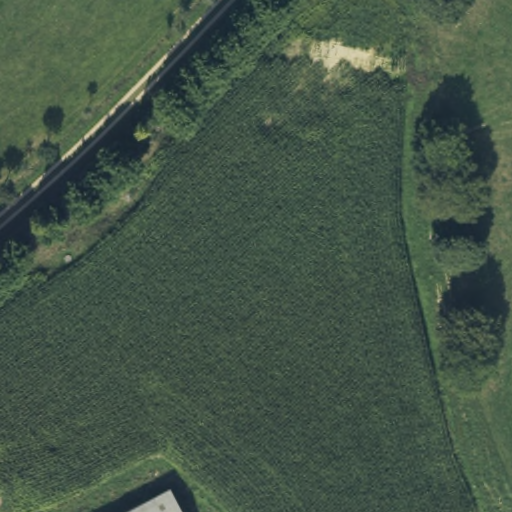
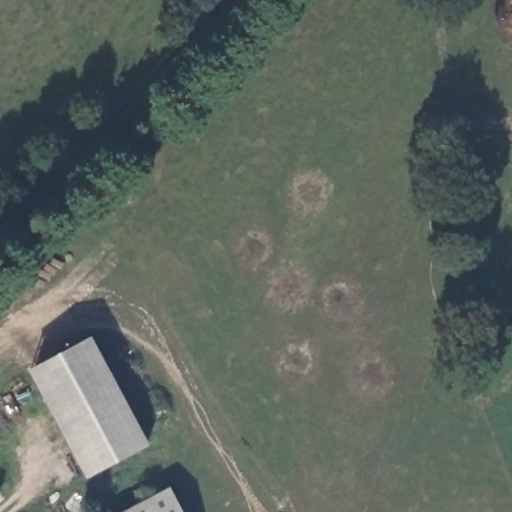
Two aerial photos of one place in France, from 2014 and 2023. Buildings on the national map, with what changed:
new [(92,336),(149,446),(87,478),(30,370),(92,336)]
unchanged [(181,512),(129,512),(170,491),(181,512)]

